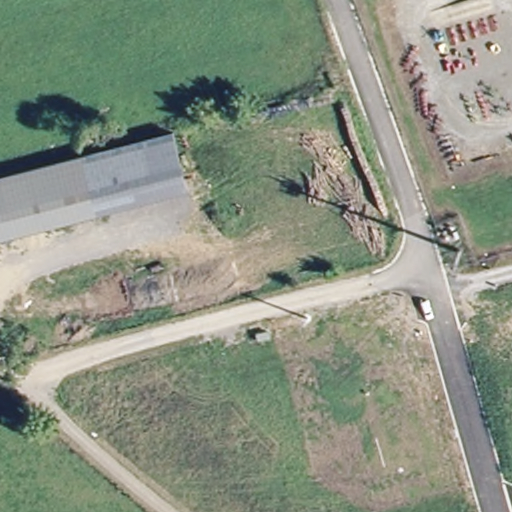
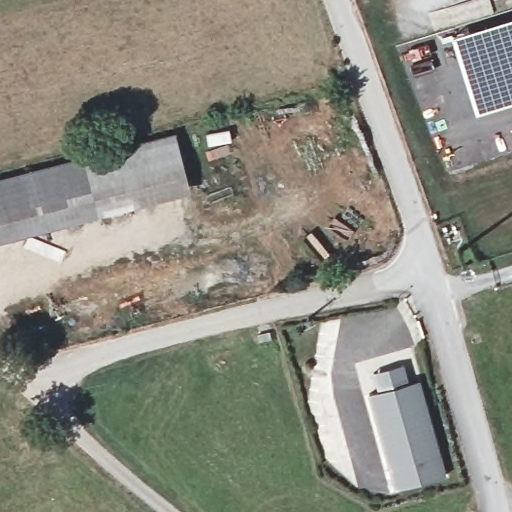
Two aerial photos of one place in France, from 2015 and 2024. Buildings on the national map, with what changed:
new [(476,115),(452,36),(512,17),(512,104),(476,115)]
unchanged [(175,131),(191,191),(103,214),(98,195),(87,156),(175,131)]
unchanged [(0,179),(59,164),(87,156),(98,195),(103,214),(79,220),(0,241),(0,179)]
new [(372,374),(402,366),(407,385),(417,382),(444,477),(395,491),(368,396),(378,393),(372,374)]

